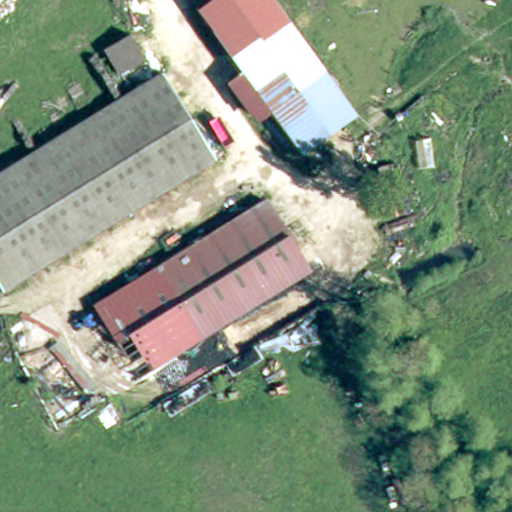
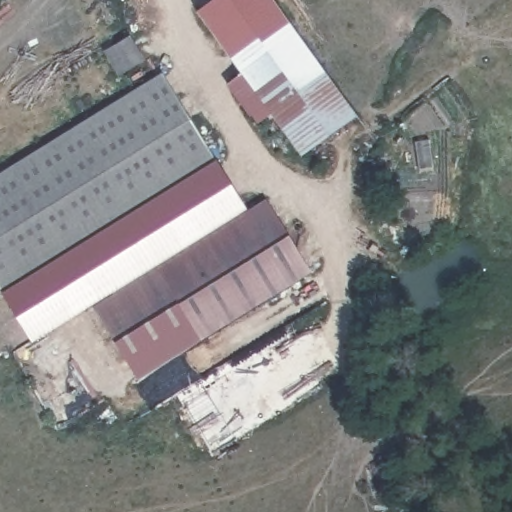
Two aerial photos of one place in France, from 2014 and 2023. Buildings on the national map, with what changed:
unchanged [(225,0),(281,0),(362,120),(308,156),(207,13),(225,0)]
unchanged [(221,157),(7,292),(0,281),(0,175),(165,69),(221,157)]
new [(221,157),(251,207),(92,304),(35,340),(7,292),(221,157)]
unchanged [(137,378),(92,304),(251,207),(264,198),(309,272),(137,378)]

